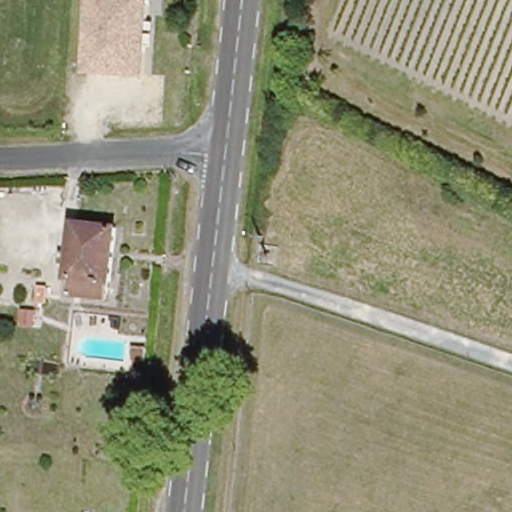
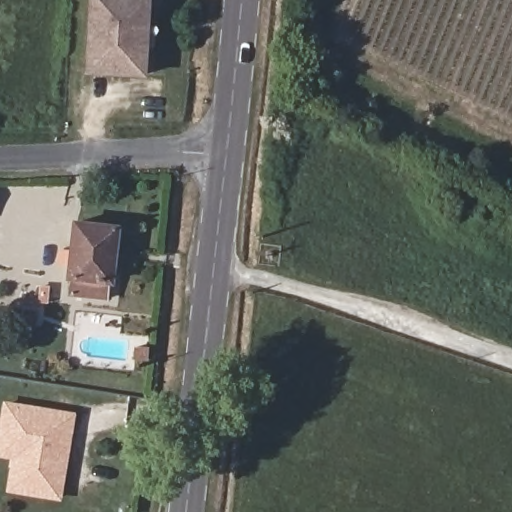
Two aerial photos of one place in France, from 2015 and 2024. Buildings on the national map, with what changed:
unchanged [(85,75),(90,0),(148,0),(144,79),(85,75)]
unchanged [(76,254),(67,252),(69,241),(80,242),(83,214),(122,218),(112,289),(75,286),(76,254)]
new [(7,492),(11,461),(0,458),(0,425),(4,401),(76,413),(62,502),(7,492)]

